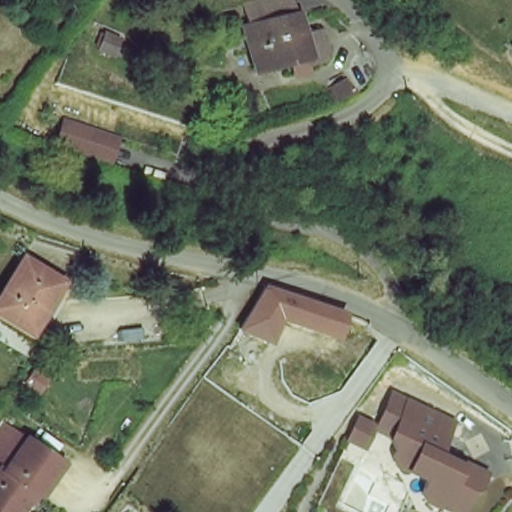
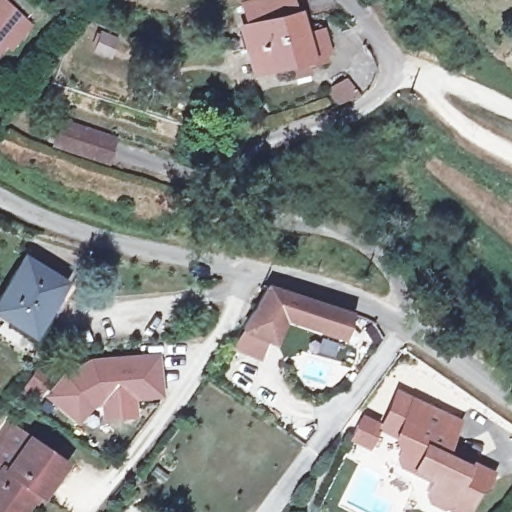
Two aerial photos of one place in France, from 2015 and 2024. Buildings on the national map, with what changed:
new [(35,25),(13,50),(7,46),(0,54),(0,0),(8,0),(35,25)]
unchanged [(284,70),(281,56),(254,64),(239,3),(246,0),(291,0),(297,22),(316,16),(322,44),(318,44),(320,53),(303,58),(305,64),(284,70)]
unchanged [(112,136),(102,162),(46,141),(53,114),(112,136)]
unchanged [(29,332),(4,315),(0,311),(0,297),(28,257),(39,266),(64,284),(29,332)]
unchanged [(271,284),(274,285),(292,291),(348,310),(340,335),(280,316),(269,335),(242,323),(254,307),(271,284)]
new [(156,353),(159,390),(133,393),(102,396),(89,403),(78,417),(49,393),(65,373),(91,359),(130,356),(156,353)]
unchanged [(427,475),(407,467),(384,457),(392,439),(372,433),(368,444),(348,437),(363,405),(378,411),(389,385),(461,417),(449,451),(487,467),(467,512),(459,512),(419,496),(427,475)]
unchanged [(7,470),(1,466),(0,465),(0,430),(9,417),(31,432),(7,470)]
unchanged [(31,432),(69,459),(46,493),(40,489),(23,512),(0,512),(0,466),(1,466),(7,470),(31,432)]

